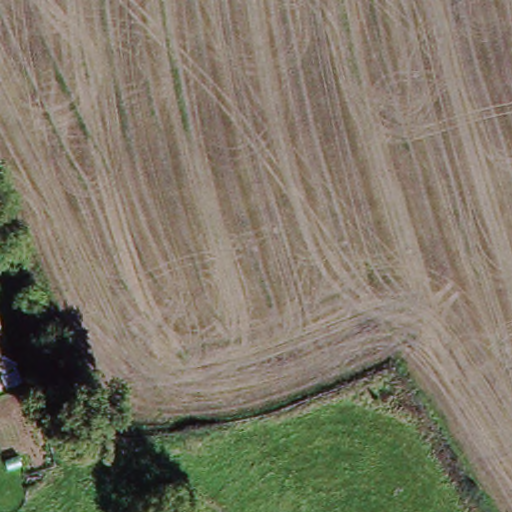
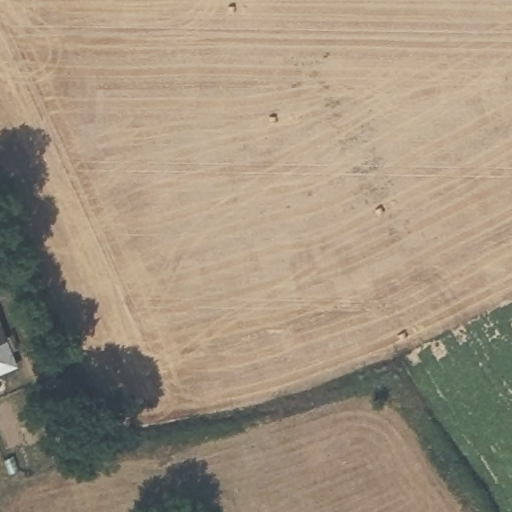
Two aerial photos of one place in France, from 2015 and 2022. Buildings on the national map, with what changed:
unchanged [(31,316),(0,333),(0,294),(25,288),(31,316)]
unchanged [(0,386),(0,347),(12,382),(0,386)]

